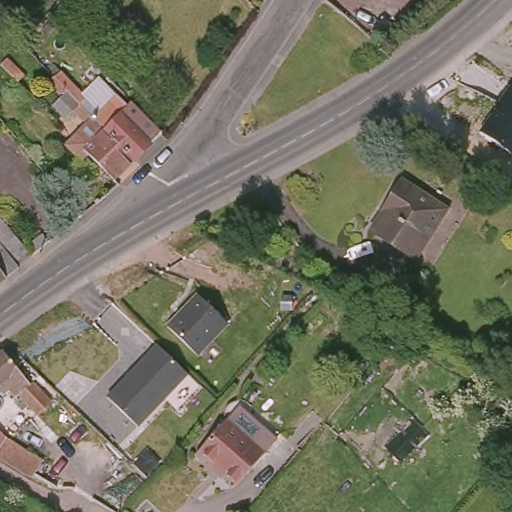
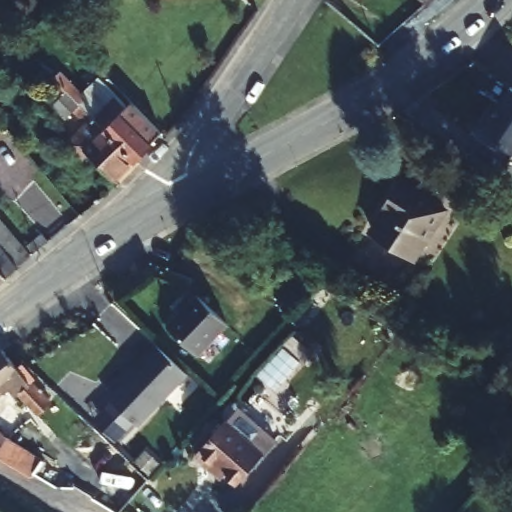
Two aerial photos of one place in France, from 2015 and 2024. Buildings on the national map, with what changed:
unchanged [(136,155),(123,169),(68,114),(58,104),(48,94),(62,80),(67,84),(59,92),(85,120),(94,111),(106,123),(117,112),(147,143),(136,155)]
unchanged [(512,144),(485,126),(512,84),(512,144)]
unchanged [(101,95),(91,105),(82,97),(92,86),(101,95)]
unchanged [(121,170),(101,192),(71,161),(83,148),(70,135),(72,134),(61,122),(68,114),(121,170)]
unchanged [(404,184),(445,217),(407,263),(369,232),(366,230),(397,192),(404,184)]
unchanged [(20,265),(9,273),(0,280),(0,242),(20,265)]
unchanged [(203,291),(231,322),(198,351),(171,320),(203,291)]
unchanged [(190,374),(142,428),(105,396),(159,345),(190,374)]
unchanged [(18,367),(31,384),(35,381),(36,383),(52,401),(39,412),(21,392),(16,396),(5,381),(0,385),(0,353),(5,350),(18,367)]
unchanged [(256,453),(231,483),(210,466),(206,470),(188,455),(217,421),(256,453)]

